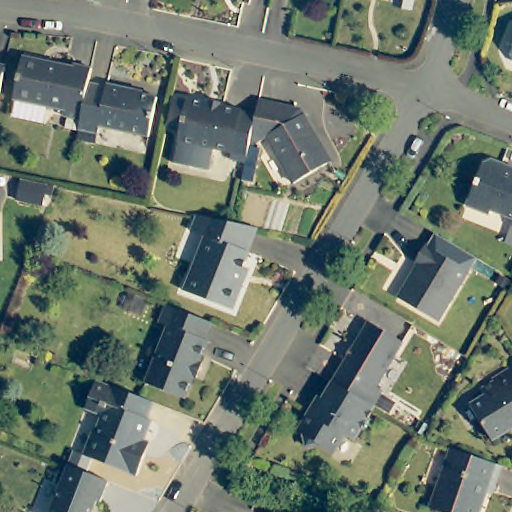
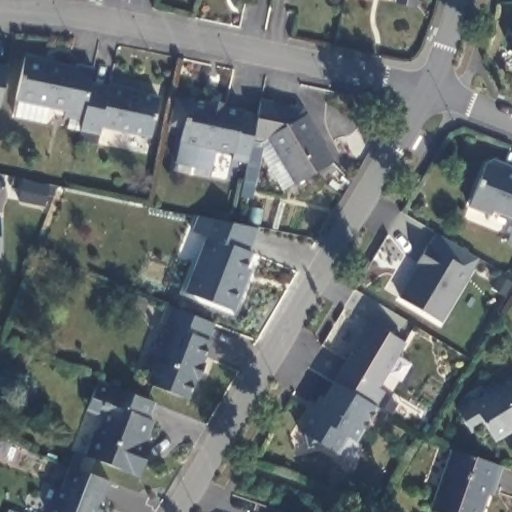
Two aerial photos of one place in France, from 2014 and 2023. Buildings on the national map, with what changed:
unchanged [(508,47),(512,38),(512,55),(508,47)]
unchanged [(82,120),(64,116),(65,112),(14,101),(23,56),(75,67),(76,65),(94,69),(90,82),(82,120)]
unchanged [(0,96),(0,67),(5,68),(0,96)]
unchanged [(107,86),(108,84),(130,89),(130,91),(158,97),(150,136),(100,126),(99,132),(80,129),(82,120),(90,82),(107,86)]
unchanged [(237,156),(239,148),(185,137),(194,94),(247,106),(261,111),(261,112),(256,135),(251,159),(237,156)]
unchanged [(305,106),(336,157),(299,181),(271,133),(265,137),(256,135),(261,112),(261,111),(265,97),(305,106)]
unchanged [(493,206),(492,210),(470,201),(487,157),(492,155),(512,162),(510,166),(512,166),(512,213),(493,206)]
unchanged [(239,223),(263,229),(255,251),(256,253),(246,282),(251,283),(240,311),(190,291),(210,237),(197,232),(202,216),(239,223)]
unchanged [(509,237),(512,229),(512,239),(509,237)]
unchanged [(470,272),(440,323),(400,301),(420,267),(415,265),(425,246),(470,272)]
unchanged [(150,298),(144,312),(125,306),(130,291),(150,298)]
unchanged [(215,323),(209,339),(211,340),(203,362),(205,363),(199,378),(196,377),(188,400),(147,385),(170,327),(160,323),(167,305),(215,323)]
unchanged [(367,322),(402,343),(377,386),(384,389),(375,406),(334,382),(367,322)]
unchanged [(512,369),(512,426),(511,427),(512,429),(512,431),(495,441),(472,404),(485,397),(485,388),(496,382),(494,378),(511,368),(512,369)]
unchanged [(149,456),(140,476),(86,456),(95,432),(100,426),(103,417),(87,411),(92,398),(99,380),(155,402),(149,418),(154,421),(146,441),(153,444),(149,456)]
unchanged [(375,406),(376,407),(355,442),(346,437),(335,455),(321,447),(306,448),(301,434),(298,432),(312,408),(316,410),(334,382),(375,406)]
unchanged [(497,486),(491,485),(481,512),(442,512),(431,508),(452,450),(502,467),(497,486)]
unchanged [(103,502),(100,501),(96,512),(53,512),(70,465),(111,481),(103,502)]

